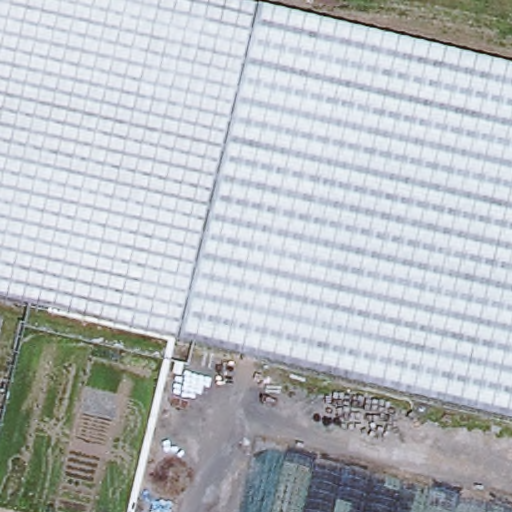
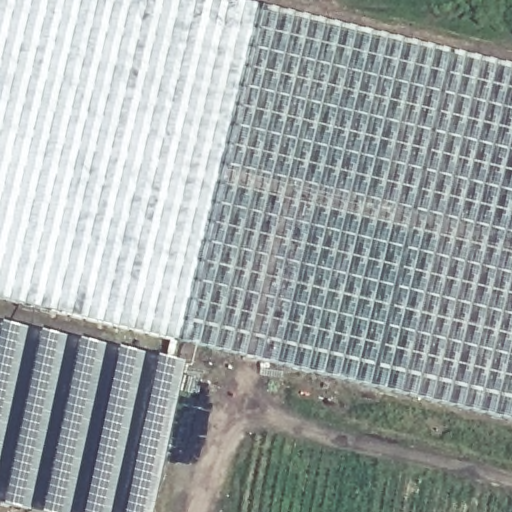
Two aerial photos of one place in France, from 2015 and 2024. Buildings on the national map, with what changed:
unchanged [(512,63),(512,416),(0,297),(0,0),(239,0),(512,63)]
new [(182,363),(150,512),(36,512),(0,504),(0,324),(182,363)]

